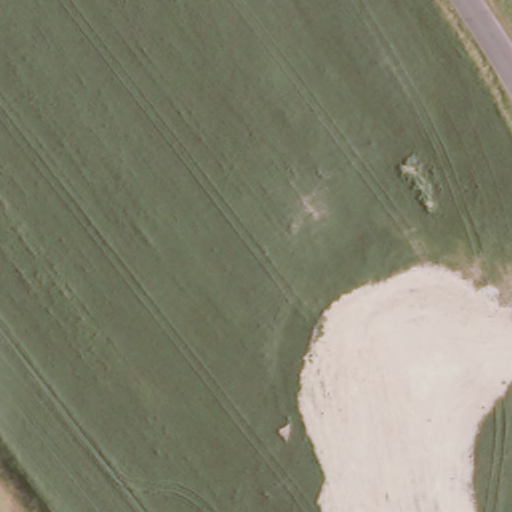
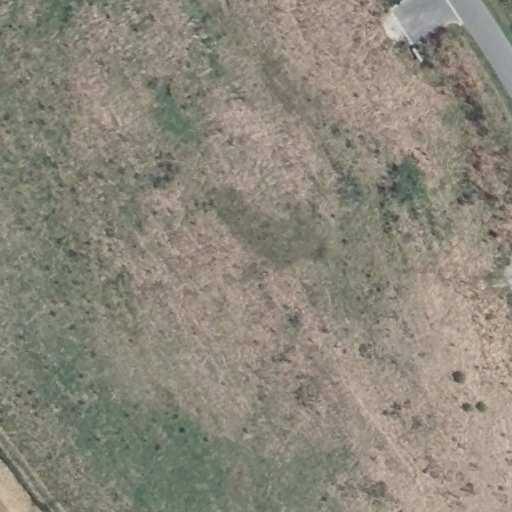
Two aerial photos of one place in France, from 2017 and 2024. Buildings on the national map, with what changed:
[]

